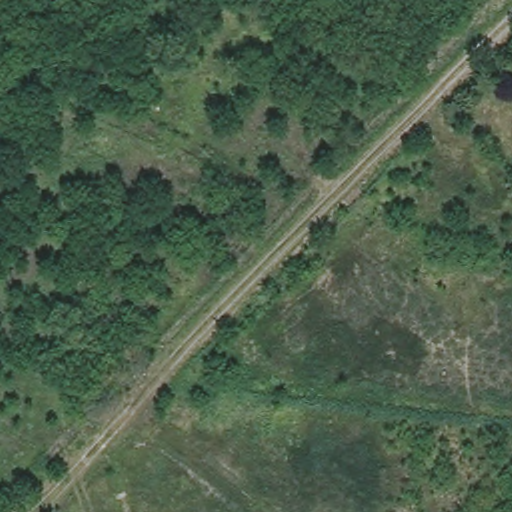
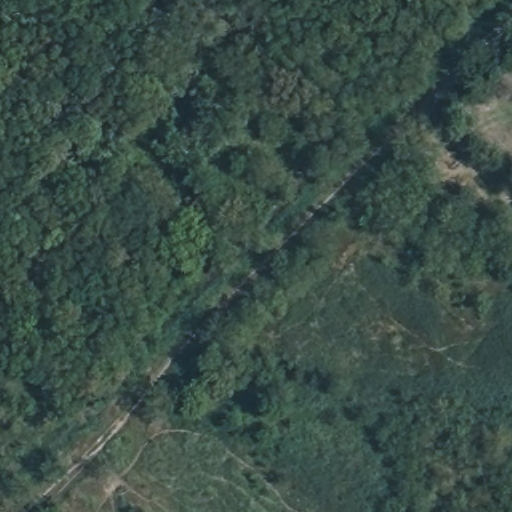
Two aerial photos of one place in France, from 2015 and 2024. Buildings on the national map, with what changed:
unchanged [(81,220),(85,207),(102,214),(96,227),(81,220)]
unchanged [(449,510),(433,487),(448,477),(464,500),(449,510)]

